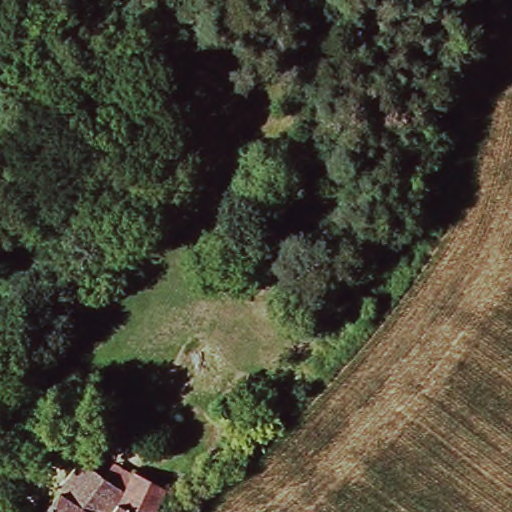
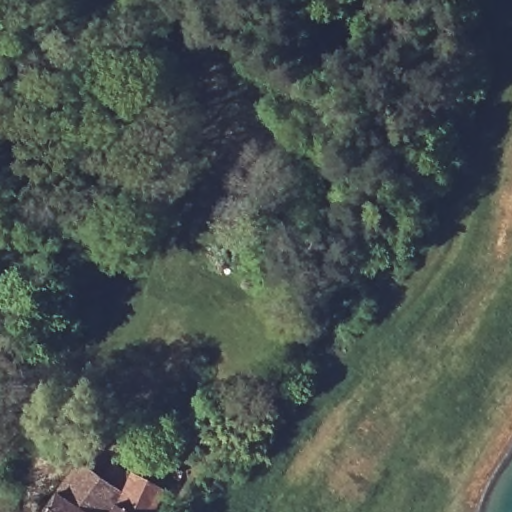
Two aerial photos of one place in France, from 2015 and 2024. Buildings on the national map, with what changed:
unchanged [(132,494),(144,475),(174,499),(165,512),(50,512),(88,465),(132,494)]

